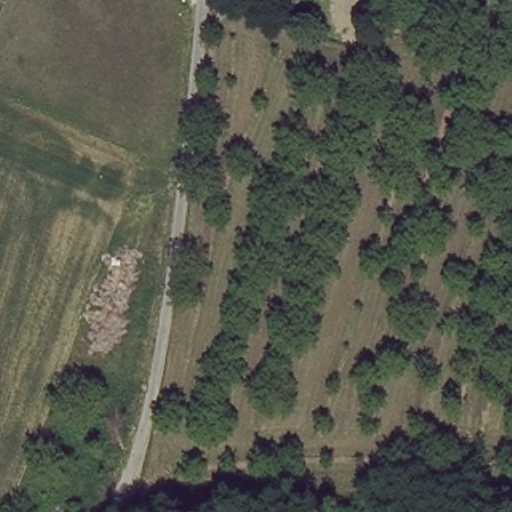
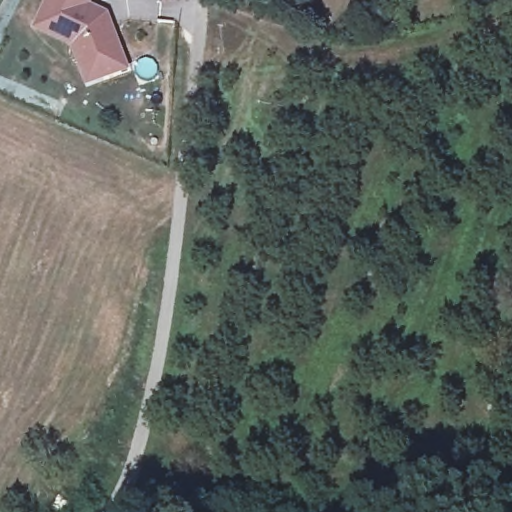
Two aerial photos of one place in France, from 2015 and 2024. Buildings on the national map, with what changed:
new [(85,87),(71,49),(33,30),(45,0),(92,0),(90,5),(106,12),(128,71),(85,87)]

